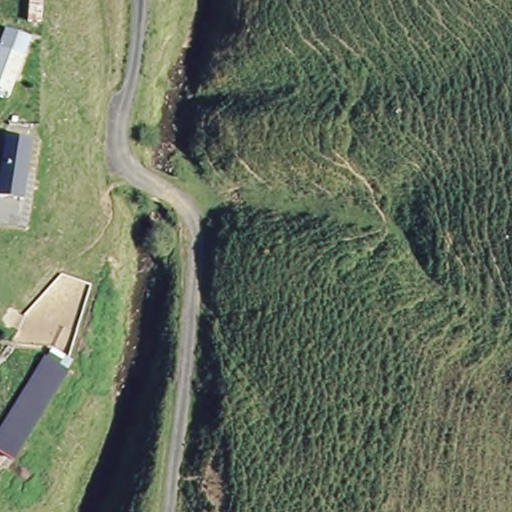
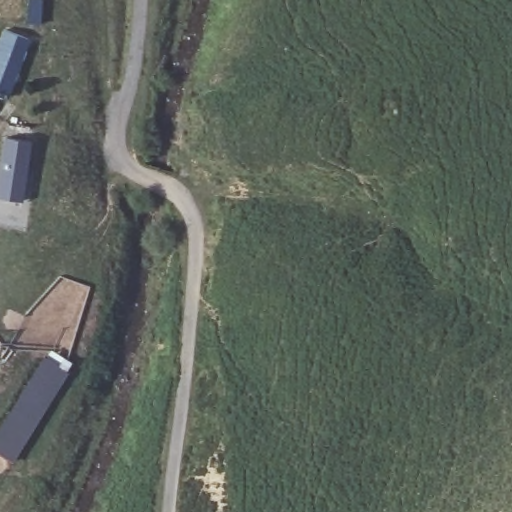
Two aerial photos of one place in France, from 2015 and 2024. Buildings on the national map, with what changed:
unchanged [(31,36),(7,100),(0,97),(0,49),(10,26),(31,36)]
unchanged [(30,143),(24,202),(0,200),(0,152),(0,140),(30,143)]
unchanged [(15,461),(0,452),(0,426),(45,359),(72,375),(15,461)]

